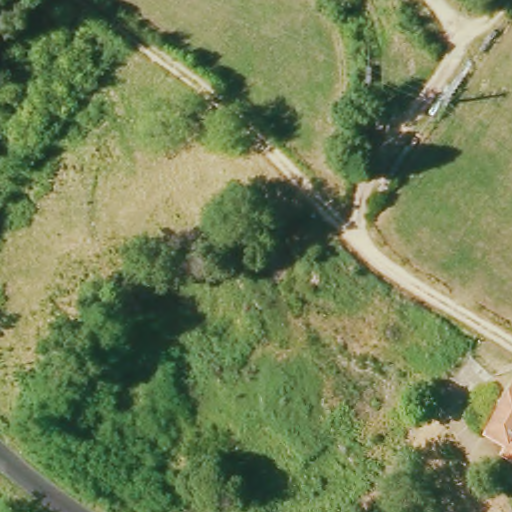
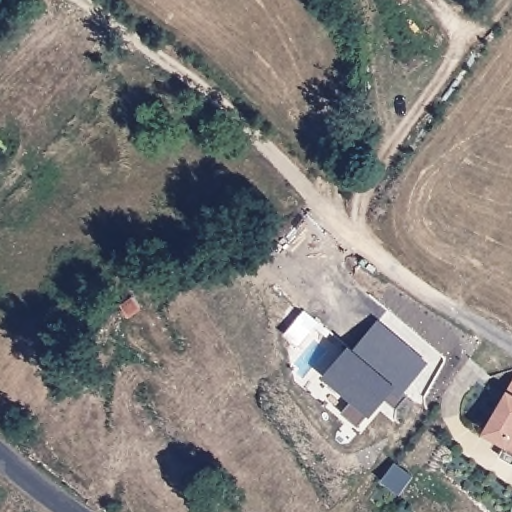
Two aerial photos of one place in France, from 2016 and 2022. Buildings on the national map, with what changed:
new [(428,362),(401,395),(393,388),(370,415),(367,412),(358,423),(343,411),(352,397),(323,372),(350,343),(355,347),(378,320),(428,362)]
unchanged [(501,441),(480,428),(512,376),(512,463),(495,452),(501,441)]
new [(396,461),(414,475),(402,492),(385,478),(396,461)]

